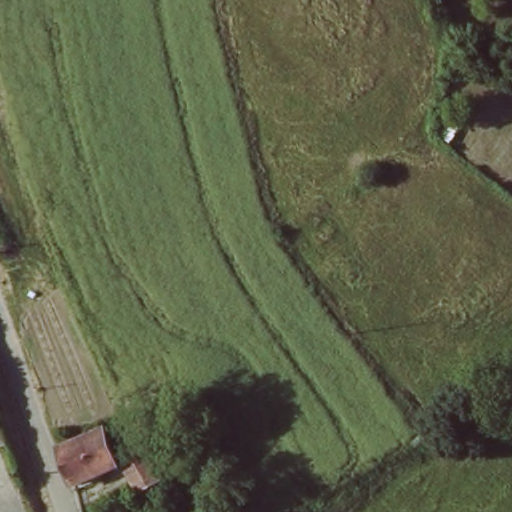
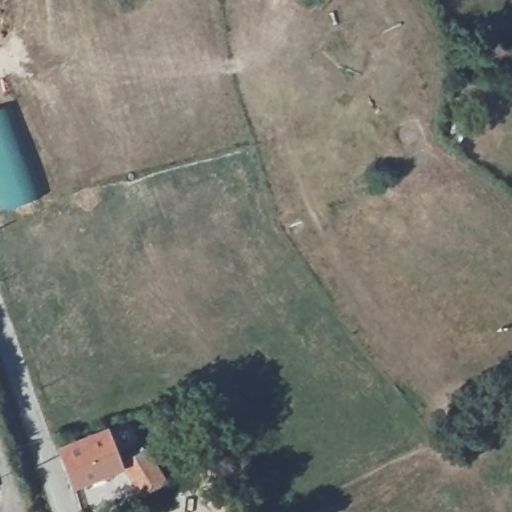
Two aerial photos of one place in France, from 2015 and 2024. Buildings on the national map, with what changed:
new [(0,207),(0,108),(8,106),(42,196),(2,211),(0,207)]
unchanged [(106,425),(122,458),(147,446),(168,485),(134,497),(124,475),(70,490),(55,448),(106,425)]

